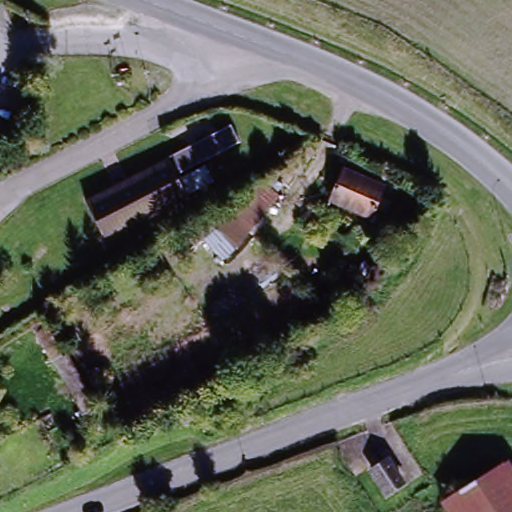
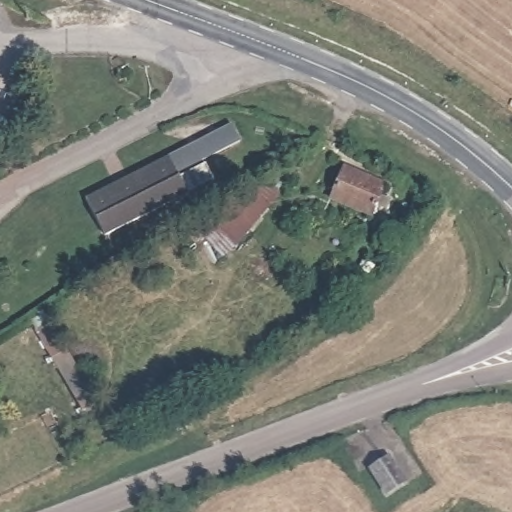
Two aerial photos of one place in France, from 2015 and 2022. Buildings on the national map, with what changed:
unchanged [(110,192),(193,149),(211,185),(128,228),(110,192)]
unchanged [(369,229),(330,204),(352,170),(391,195),(369,229)]
unchanged [(202,250),(195,253),(183,235),(211,212),(221,221),(253,188),(264,191),(271,181),(284,188),(272,211),(241,249),(218,266),(202,250)]
unchanged [(55,325),(95,407),(82,416),(35,338),(55,325)]
unchanged [(366,471),(389,457),(408,486),(383,503),(366,471)]
demolished [(512,459),(512,460),(512,512),(445,512),(441,504),(512,459)]

